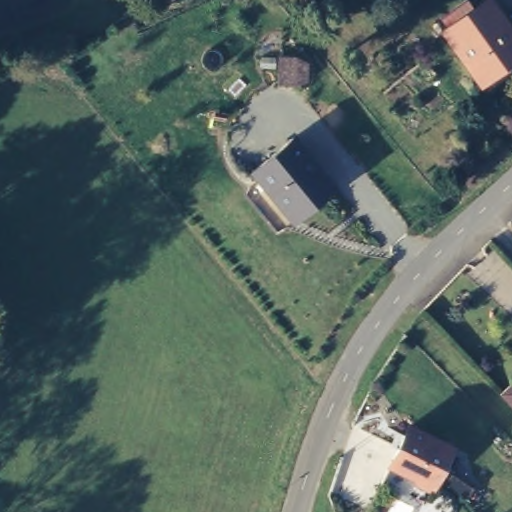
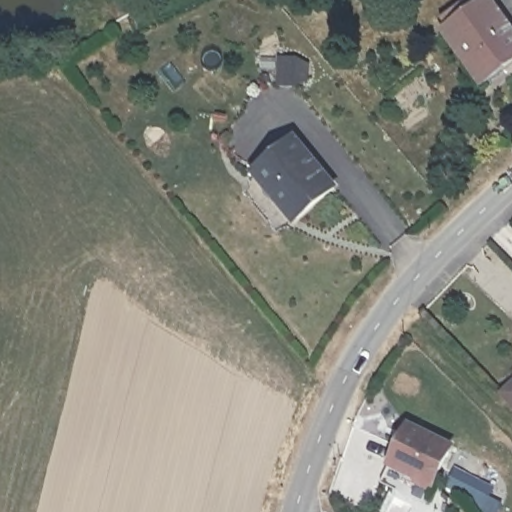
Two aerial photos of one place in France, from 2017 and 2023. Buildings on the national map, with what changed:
unchanged [(512,24),(512,63),(496,77),(458,33),(493,2),(512,24)]
unchanged [(338,187),(291,221),(251,172),(296,135),(338,187)]
unchanged [(496,397),(512,381),(512,414),(496,397)]
unchanged [(379,480),(407,421),(455,444),(424,501),(379,480)]

